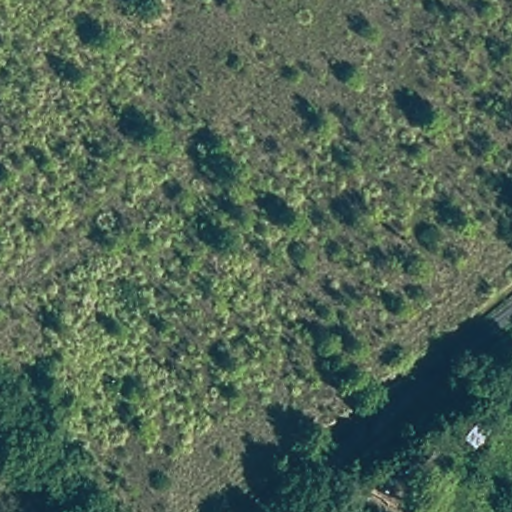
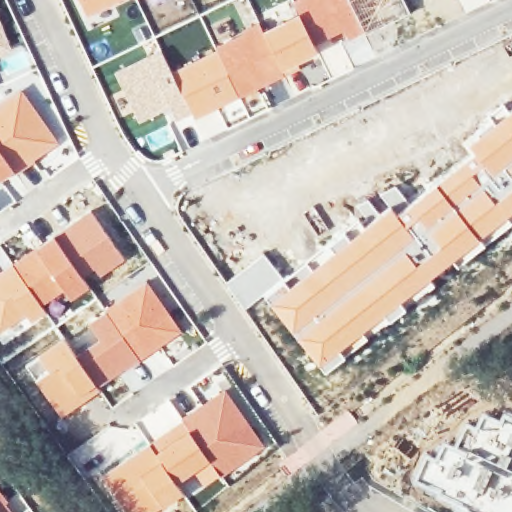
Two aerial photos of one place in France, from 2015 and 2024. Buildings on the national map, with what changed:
new [(73,0),(128,0),(84,21),(73,0)]
new [(345,43),(341,37),(317,54),(296,12),(290,0),(348,0),(365,35),(345,43)]
new [(365,35),(348,0),(404,0),(410,12),(365,35)]
new [(466,13),(460,0),(490,0),(490,1),(466,13)]
new [(296,12),(317,54),(298,64),(301,68),(285,76),(262,30),(296,12)]
new [(12,49),(0,54),(0,20),(12,49)]
new [(258,22),(262,30),(285,76),(240,99),(214,47),(258,22)]
new [(341,37),(345,43),(365,35),(375,57),(329,80),(317,54),(341,37)]
new [(214,47),(240,99),(195,122),(192,115),(172,71),(214,47)]
new [(160,48),(172,71),(192,115),(174,122),(166,108),(138,123),(112,72),(160,48)]
new [(21,85),(27,81),(39,74),(61,120),(57,122),(45,103),(38,107),(61,142),(15,174),(0,183),(0,100),(21,85)]
new [(461,141),(503,102),(507,107),(512,103),(512,223),(504,230),(457,266),(451,260),(480,237),(434,180),(468,149),(461,141)]
new [(282,277),(342,227),(357,215),(363,222),(365,220),(355,206),(367,197),(378,211),(387,204),(379,193),(395,184),(408,201),(434,180),(480,237),(451,260),(430,277),(435,284),(324,373),(262,296),(243,311),(223,282),(263,252),(282,277)]
new [(90,210),(125,259),(97,278),(62,230),(90,210)]
new [(53,235),(90,284),(68,300),(62,292),(35,247),(53,235)]
new [(62,292),(42,306),(47,314),(3,347),(0,342),(0,247),(11,262),(35,247),(62,292)]
new [(145,280),(181,331),(141,361),(105,310),(145,280)]
new [(97,338),(86,325),(105,310),(141,361),(99,387),(76,354),(97,338)]
new [(62,335),(76,354),(99,387),(101,391),(60,419),(23,364),(62,335)]
new [(140,420),(168,400),(181,417),(224,388),(265,446),(221,477),(202,488),(192,476),(180,486),(147,442),(152,438),(140,420)]
unchanged [(488,428),(471,447),(462,437),(475,417),(488,428)]
new [(147,442),(180,486),(185,492),(157,512),(120,512),(97,479),(147,442)]
new [(7,501),(17,492),(30,508),(25,512),(0,512),(0,491),(7,501)]

